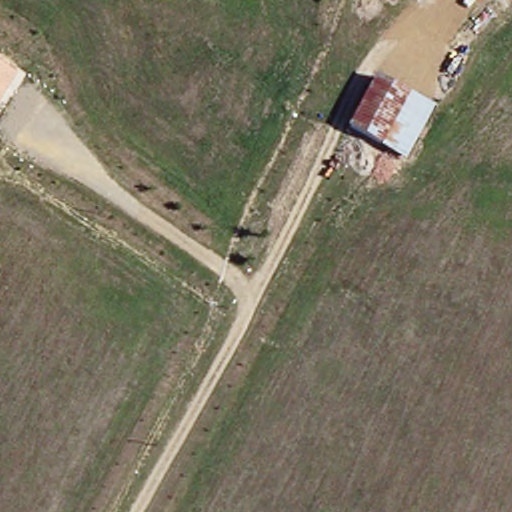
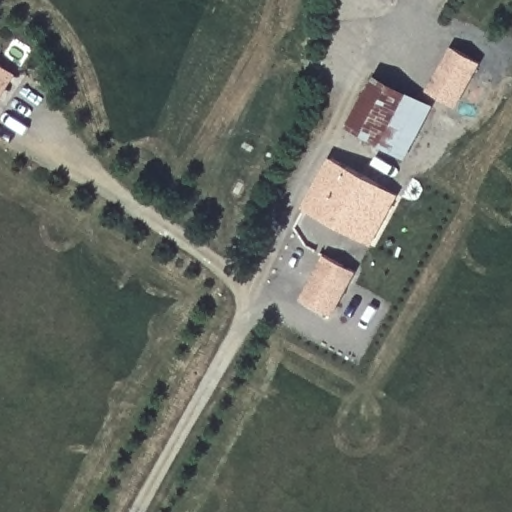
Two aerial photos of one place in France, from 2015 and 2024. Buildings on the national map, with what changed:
new [(459,109),(428,93),(454,49),(484,66),(459,109)]
unchanged [(24,74),(13,90),(0,110),(0,58),(24,74)]
unchanged [(409,159),(357,130),(385,78),(437,106),(409,159)]
new [(373,247),(305,210),(332,159),(400,196),(373,247)]
new [(335,318),(303,301),(327,256),(358,273),(335,318)]

